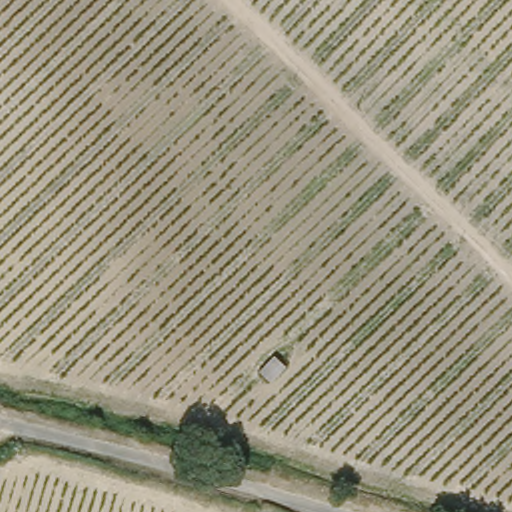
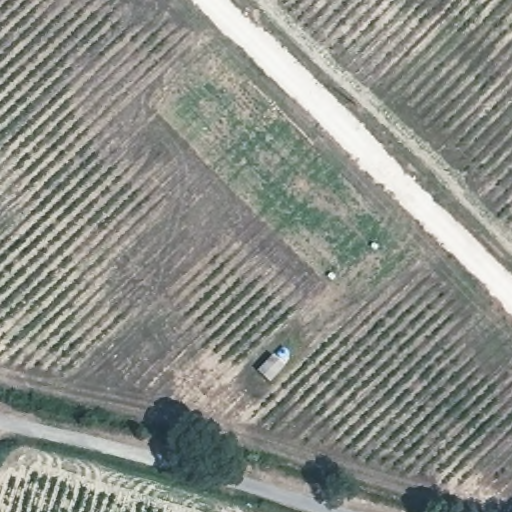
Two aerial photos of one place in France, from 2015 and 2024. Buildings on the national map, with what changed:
unchanged [(289,361),(275,374),(264,364),(277,349),(289,361)]

